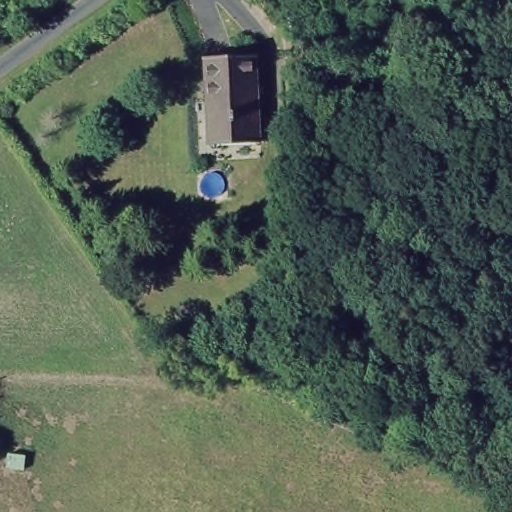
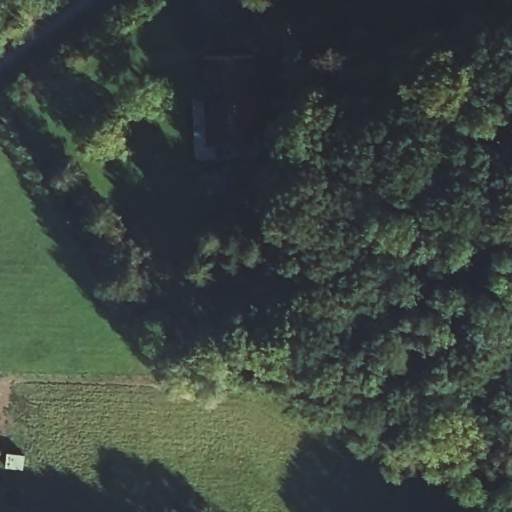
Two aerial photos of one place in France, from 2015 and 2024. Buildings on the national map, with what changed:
unchanged [(203,54),(256,57),(255,151),(203,147),(203,54)]

